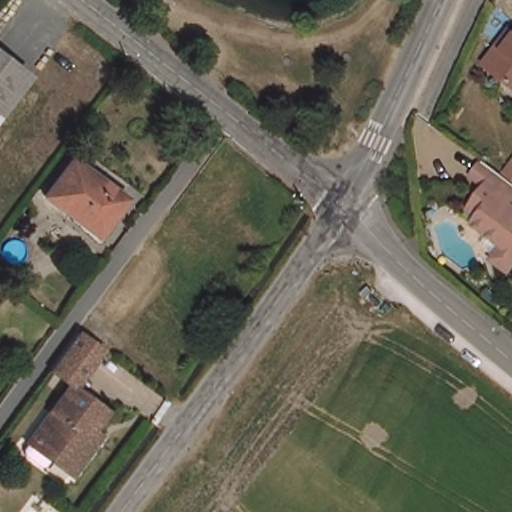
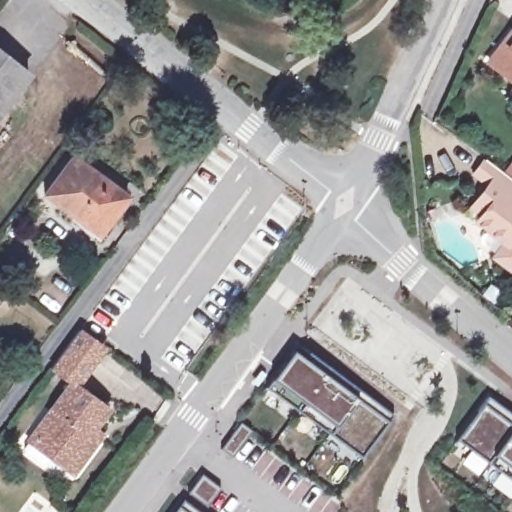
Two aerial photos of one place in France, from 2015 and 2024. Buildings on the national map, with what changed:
unchanged [(500,70),(485,58),(510,24),(512,25),(512,79),(500,70)]
unchanged [(0,117),(0,46),(34,72),(0,117)]
unchanged [(46,195),(74,159),(125,197),(111,215),(113,216),(100,235),(46,195)]
unchanged [(500,174),(512,183),(512,199),(508,204),(512,206),(512,262),(506,270),(490,258),(501,244),(473,222),(478,216),(468,208),(478,195),(484,198),(490,191),(470,176),(481,160),(500,174)]
unchanged [(51,459),(47,464),(42,465),(25,452),(25,448),(35,435),(73,383),(52,367),(80,331),(105,348),(77,385),(110,410),(96,428),(104,433),(100,440),(78,468),(73,475),(51,459)]
new [(272,380),(292,353),(298,344),(393,416),(361,460),(266,387),(272,380)]
new [(488,396),(512,414),(512,481),(457,440),(488,396)]
new [(242,422),(254,431),(234,458),(222,449),(242,422)]
new [(203,475),(222,488),(208,507),(190,493),(203,475)]
new [(199,512),(176,512),(184,500),(199,512)]

